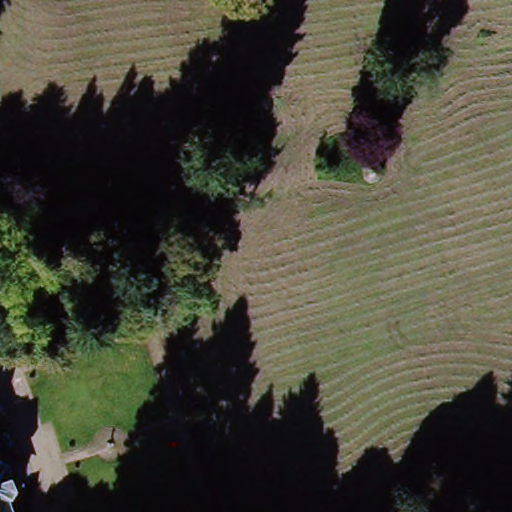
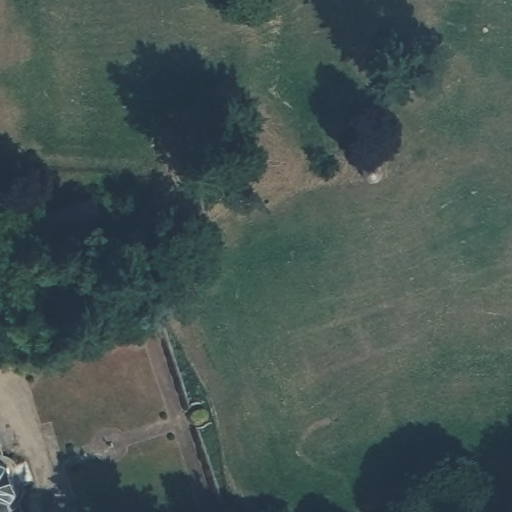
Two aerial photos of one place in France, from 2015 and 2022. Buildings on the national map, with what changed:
unchanged [(373,164),(372,179),(363,180),(363,164),(373,164)]
unchanged [(88,208),(93,221),(41,238),(37,225),(88,208)]
unchanged [(15,500),(3,505),(6,512),(0,512),(0,473),(6,471),(15,500)]

